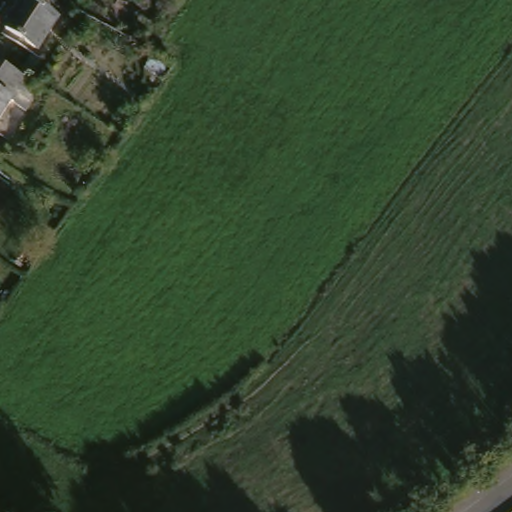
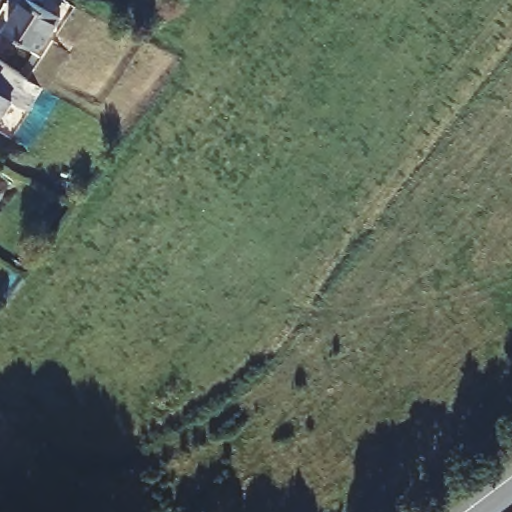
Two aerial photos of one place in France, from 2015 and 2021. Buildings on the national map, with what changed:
unchanged [(41,60),(7,39),(31,0),(61,0),(73,7),(41,60)]
unchanged [(180,68),(167,86),(151,77),(158,69),(153,66),(159,55),(180,68)]
unchanged [(28,84),(40,65),(46,70),(35,88),(28,84)]
unchanged [(5,149),(0,145),(0,67),(40,96),(5,149)]

